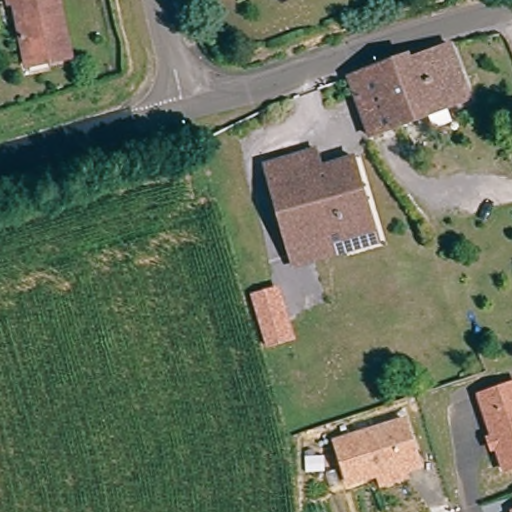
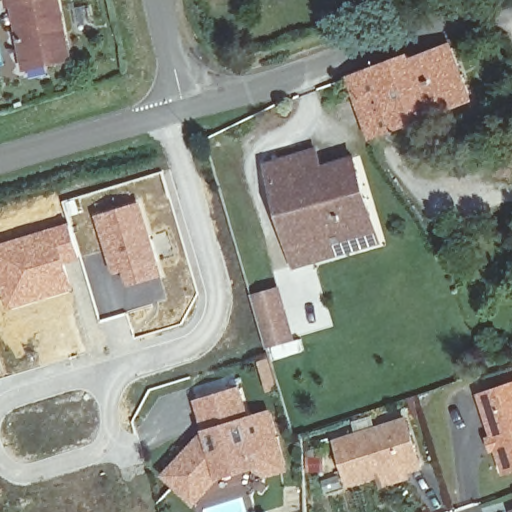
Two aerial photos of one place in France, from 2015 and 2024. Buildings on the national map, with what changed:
unchanged [(27,61),(14,2),(8,4),(7,0),(59,0),(72,56),(51,61),(29,66),(27,61)]
unchanged [(407,54),(408,58),(449,44),(469,98),(397,125),(370,136),(348,75),(407,54)]
unchanged [(322,163),(327,175),(358,166),(384,257),(356,265),(348,245),(297,260),(272,177),(322,163)]
new [(162,277),(126,288),(122,271),(113,273),(95,215),(141,203),(162,277)]
new [(69,222),(80,260),(66,264),(72,289),(8,308),(0,281),(0,242),(69,222)]
unchanged [(267,350),(251,294),(281,288),(297,339),(267,350)]
unchanged [(496,435),(482,393),(512,383),(512,468),(506,469),(498,444),(493,445),(491,437),(496,435)]
new [(250,416),(272,409),(290,470),(266,477),(256,468),(219,479),(195,507),(161,475),(202,429),(194,401),(242,386),(250,416)]
unchanged [(380,488),(377,479),(349,486),(332,439),(407,416),(424,468),(410,472),(410,479),(380,488)]

